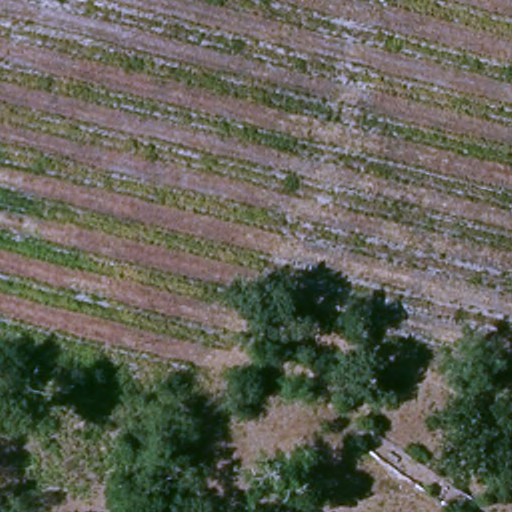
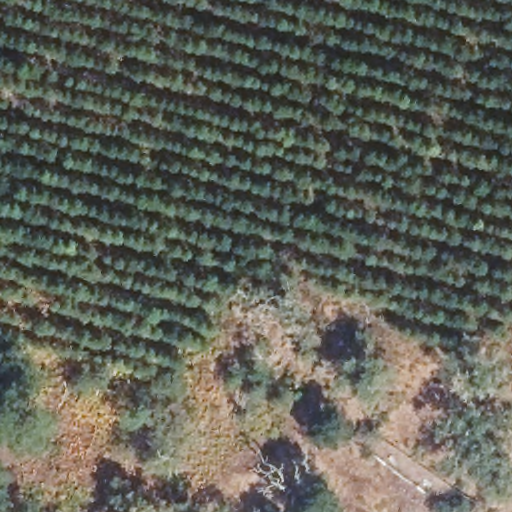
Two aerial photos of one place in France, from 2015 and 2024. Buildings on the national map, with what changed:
[]

